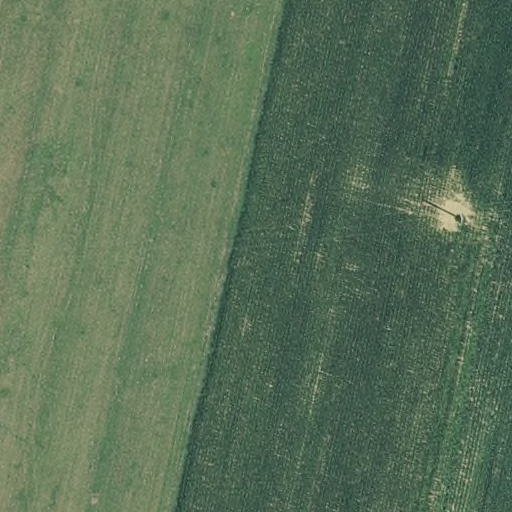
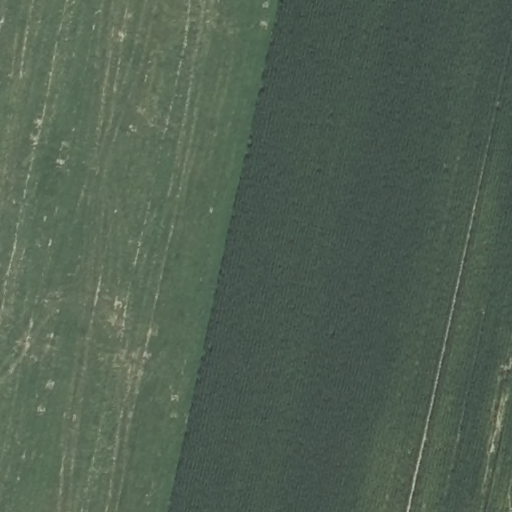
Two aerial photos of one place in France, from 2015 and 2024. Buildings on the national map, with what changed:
[]

